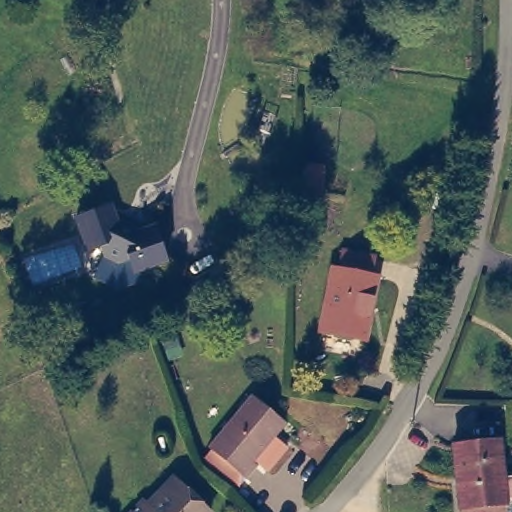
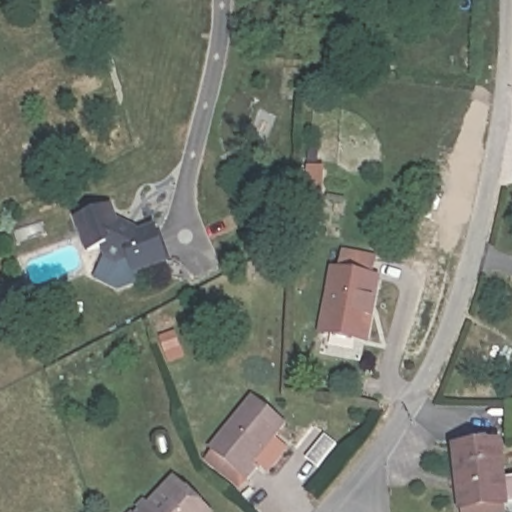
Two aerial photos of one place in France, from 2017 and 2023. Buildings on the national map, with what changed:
unchanged [(116,201),(120,223),(132,229),(156,222),(168,263),(129,278),(103,257),(99,247),(86,251),(75,217),(116,201)]
unchanged [(376,258),(371,279),(376,280),(362,340),(319,329),(331,269),(336,270),(341,249),(376,258)]
unchanged [(203,454),(210,447),(208,446),(251,394),(286,420),(255,456),(258,465),(247,474),(241,470),(233,478),(203,454)]
unchanged [(462,512),(461,499),(458,499),(452,440),(500,436),(504,497),(506,509),(462,512)]
unchanged [(153,505),(181,482),(211,512),(136,512),(149,501),(153,505)]

